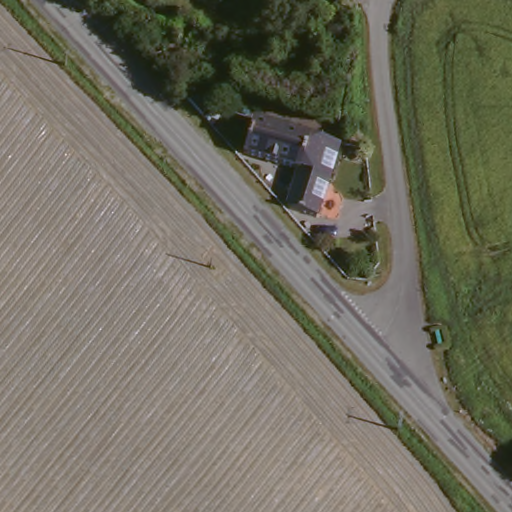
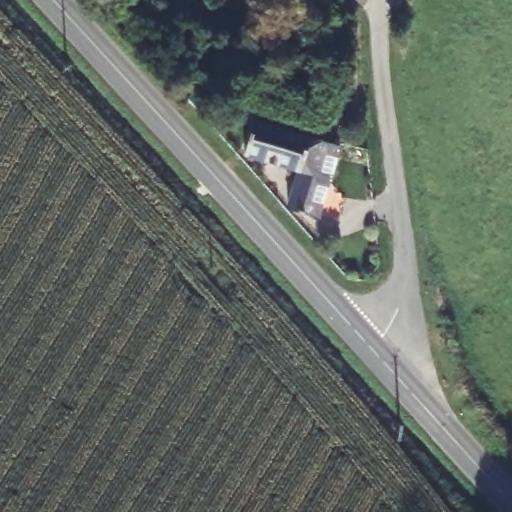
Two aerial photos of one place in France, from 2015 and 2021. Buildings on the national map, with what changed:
unchanged [(347,144),(328,211),(295,201),(307,164),(255,148),(264,119),(347,144)]

